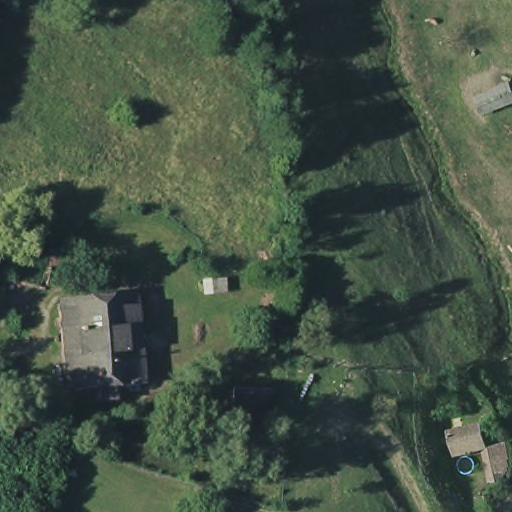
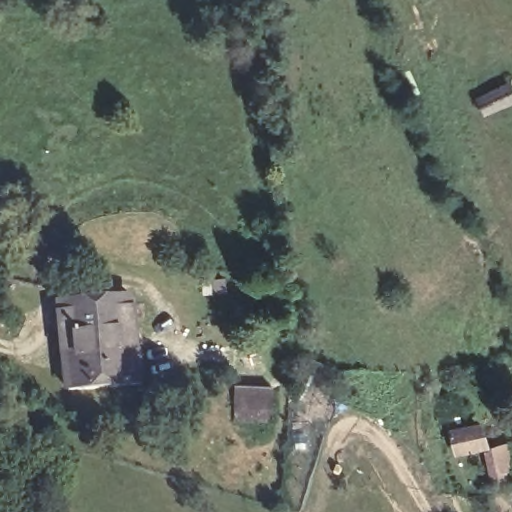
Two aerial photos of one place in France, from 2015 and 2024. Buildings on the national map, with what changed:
unchanged [(512,79),(512,106),(480,119),(472,93),(510,72),(512,79)]
unchanged [(128,262),(143,376),(72,383),(60,267),(128,262)]
unchanged [(288,382),(288,410),(234,408),(236,379),(288,382)]
unchanged [(489,447),(477,451),(457,458),(455,451),(453,430),(484,424),(489,447)]

